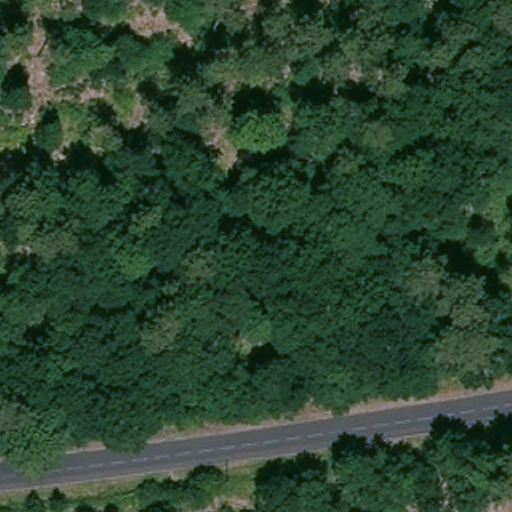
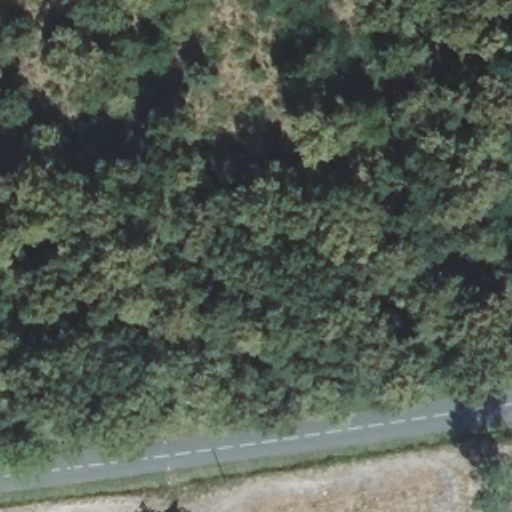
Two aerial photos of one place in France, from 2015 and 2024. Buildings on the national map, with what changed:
unchanged [(295,512),(293,478),(346,477),(347,512),(295,512)]
unchanged [(223,507),(222,512),(184,512),(186,503),(223,507)]

